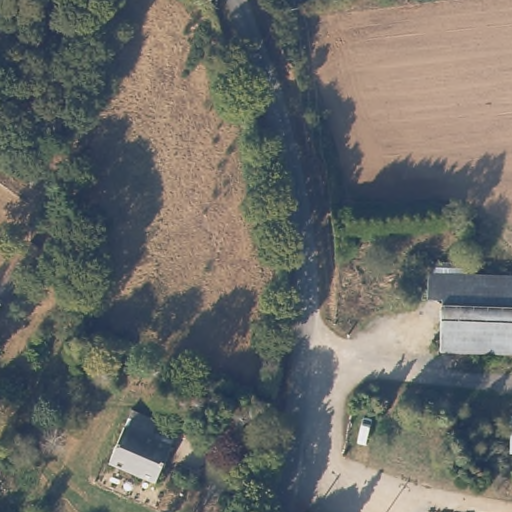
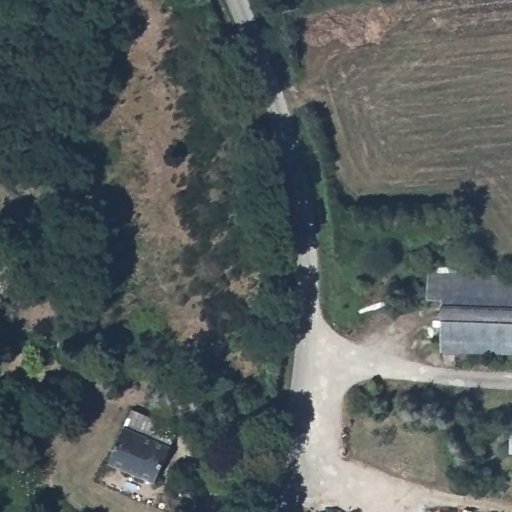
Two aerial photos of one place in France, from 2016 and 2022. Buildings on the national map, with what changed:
unchanged [(442,353),(443,300),(429,300),(429,277),(429,265),(468,265),(469,277),(512,279),(512,355),(442,353)]
unchanged [(512,418),(512,449),(508,448),(507,417),(512,418)]
unchanged [(169,437),(156,471),(111,455),(122,418),(169,437)]

